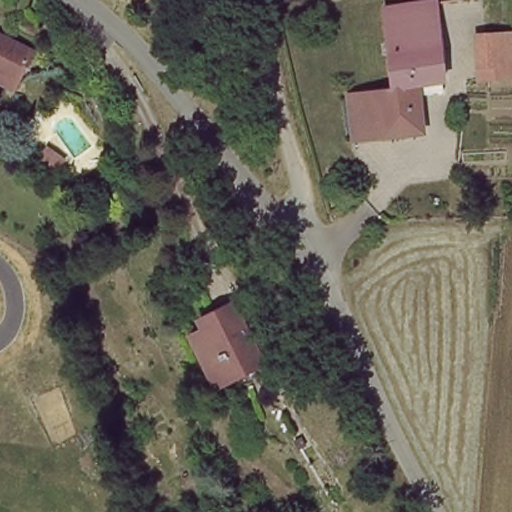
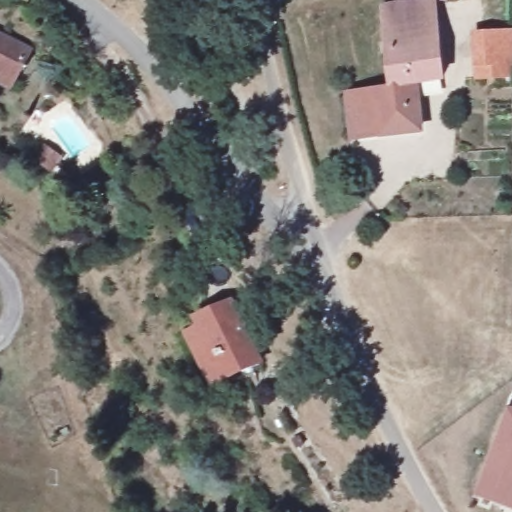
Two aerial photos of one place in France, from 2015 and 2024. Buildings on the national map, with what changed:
unchanged [(422,94),(424,134),(349,141),(345,94),(392,89),(380,7),(427,0),(437,0),(447,89),(422,94)]
unchanged [(494,64),(472,63),(470,33),(493,34),(512,34),(512,79),(494,78),(494,64)]
unchanged [(0,85),(0,36),(27,49),(12,79),(7,89),(0,85)]
unchanged [(53,174),(34,161),(47,145),(67,158),(53,174)]
unchanged [(237,309),(266,368),(244,380),(242,377),(233,381),(229,374),(217,379),(201,346),(208,342),(201,329),(237,309)]
new [(512,409),(512,482),(508,481),(500,502),(480,494),(510,409),(512,409)]

